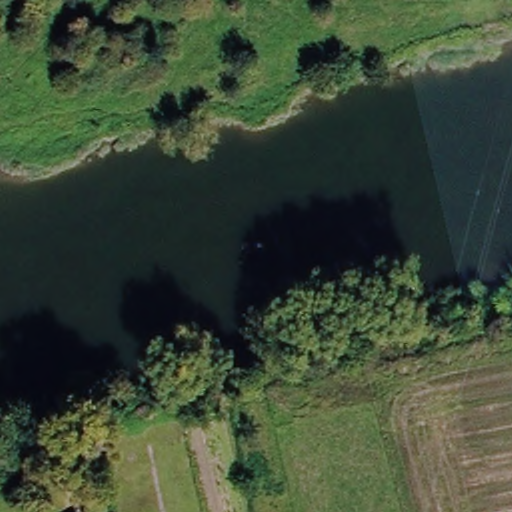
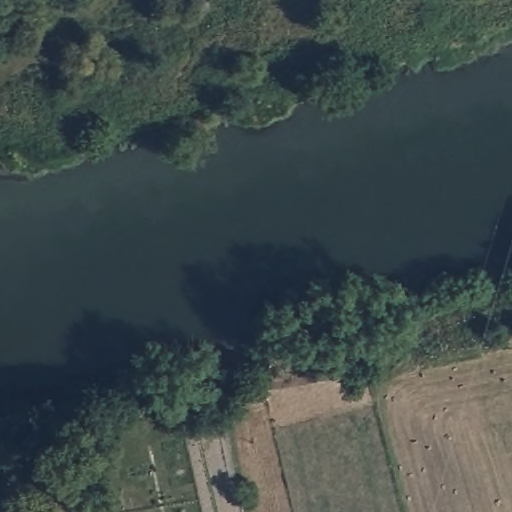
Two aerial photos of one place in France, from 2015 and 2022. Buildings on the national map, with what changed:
[]

